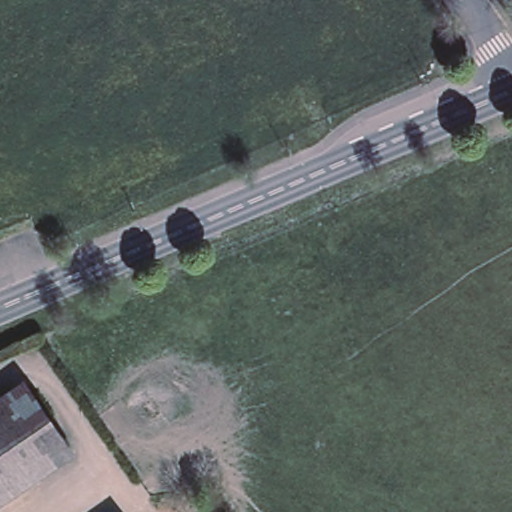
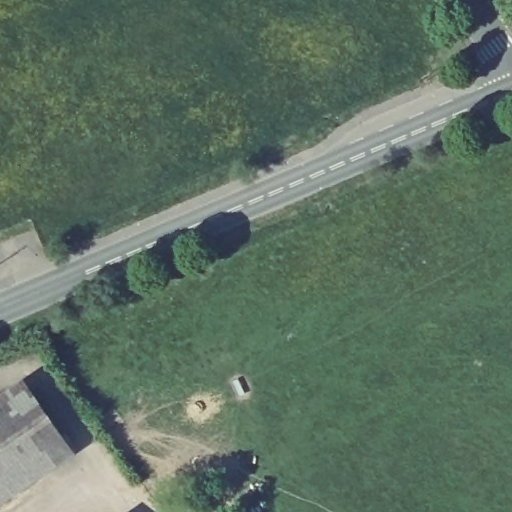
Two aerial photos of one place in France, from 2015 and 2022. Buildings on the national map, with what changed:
unchanged [(3,512),(0,512),(0,394),(20,380),(78,458),(3,512)]

